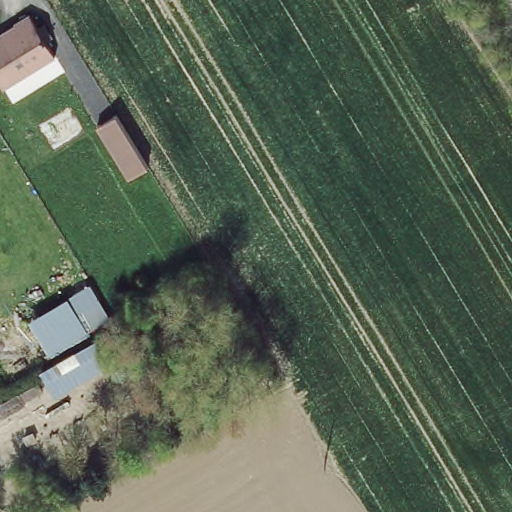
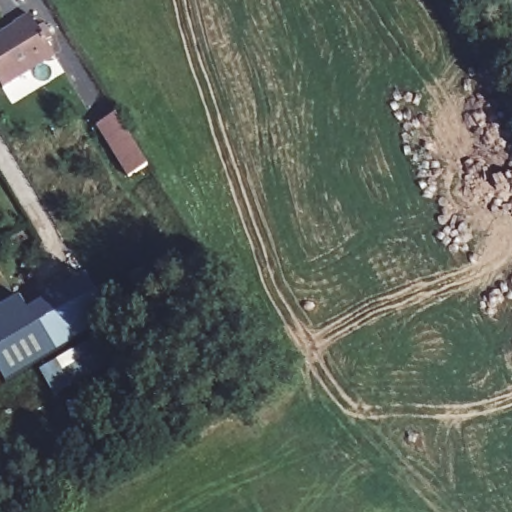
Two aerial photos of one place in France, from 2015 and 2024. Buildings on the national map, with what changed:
unchanged [(37,20),(45,32),(49,30),(57,43),(52,46),(61,61),(11,92),(0,73),(0,52),(26,37),(21,29),(37,20)]
unchanged [(117,118),(147,168),(128,179),(98,130),(117,118)]
unchanged [(92,283),(112,319),(89,331),(50,353),(30,320),(67,297),(92,283)]
new [(0,373),(0,307),(17,299),(30,320),(50,353),(5,380),(0,373)]
unchanged [(42,371),(102,338),(115,363),(56,397),(42,371)]

